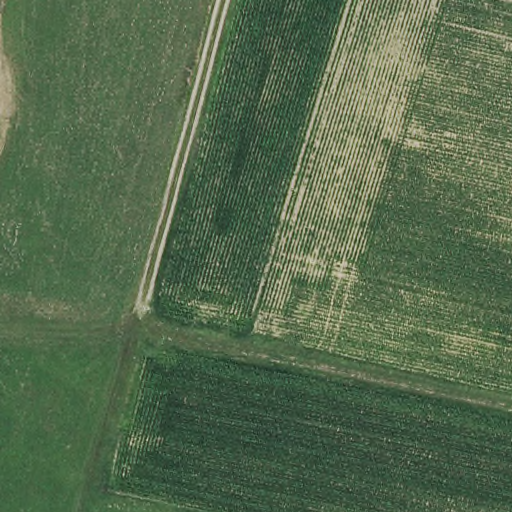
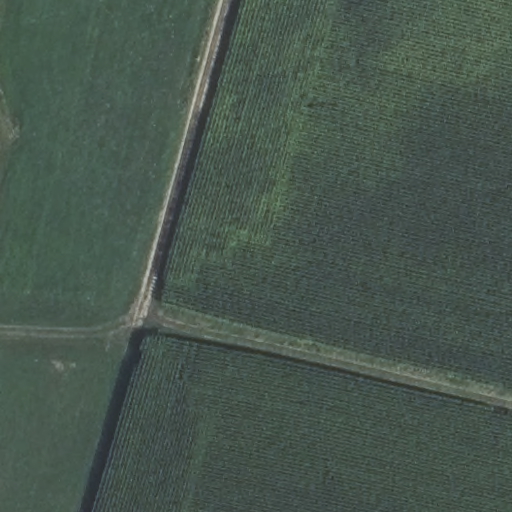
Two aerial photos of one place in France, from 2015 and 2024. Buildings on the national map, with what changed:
[]

